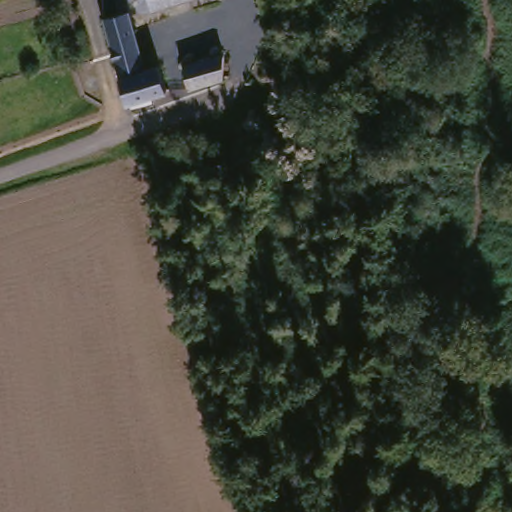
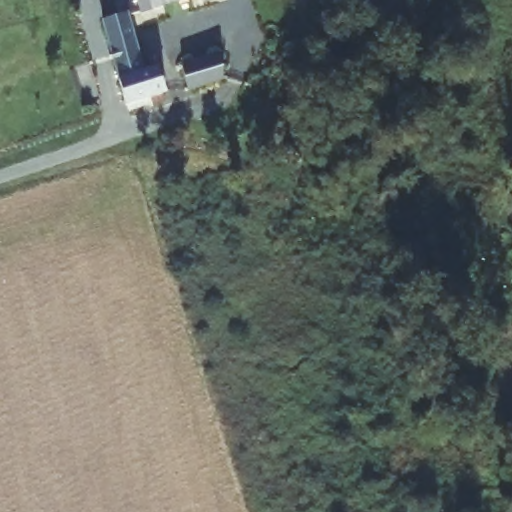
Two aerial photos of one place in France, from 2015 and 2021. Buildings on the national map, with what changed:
unchanged [(147,55),(124,62),(112,15),(126,10),(124,0),(172,0),(137,12),(147,55)]
unchanged [(229,52),(231,76),(195,88),(187,65),(229,52)]
unchanged [(167,88),(129,101),(124,81),(121,75),(160,63),(167,88)]

